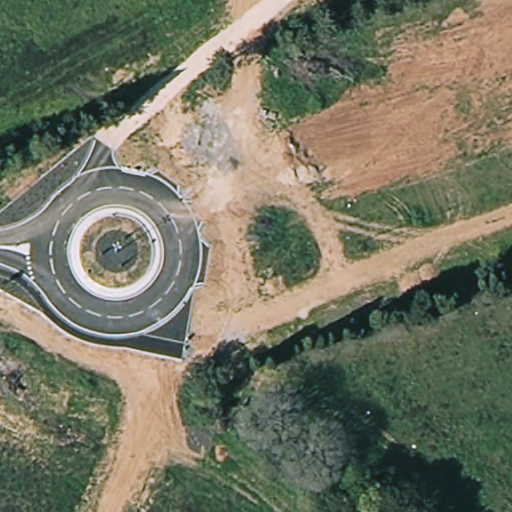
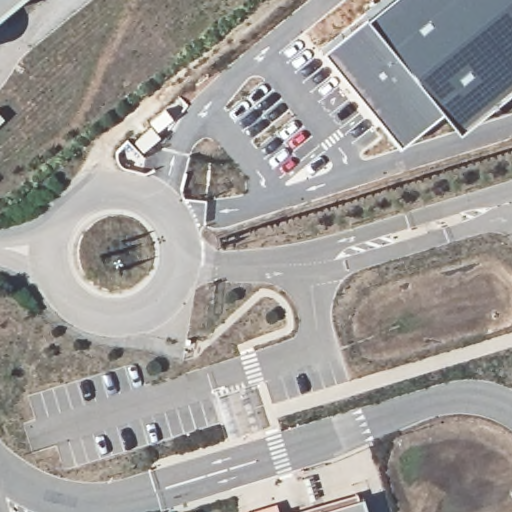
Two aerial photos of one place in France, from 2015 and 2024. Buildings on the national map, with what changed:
unchanged [(0,1),(0,0),(1,0),(0,1)]
new [(443,108),(399,145),(323,50),(366,14),(383,0),(512,0),(512,85),(459,129),(443,108)]

